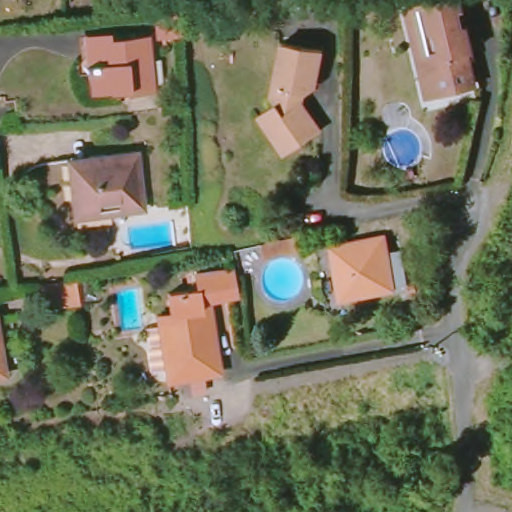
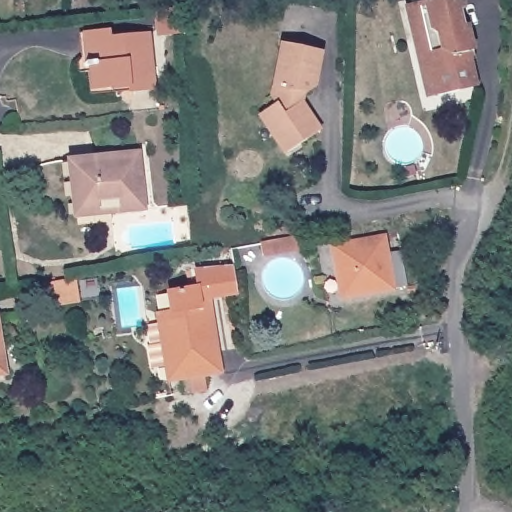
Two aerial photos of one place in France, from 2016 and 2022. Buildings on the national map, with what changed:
unchanged [(416,80),(410,56),(416,55),(408,26),(405,27),(401,7),(430,0),(456,0),(459,10),(455,12),(457,27),(462,26),(469,53),(462,55),(470,85),(454,89),(454,94),(433,99),(421,102),(416,80)]
unchanged [(180,14),(180,40),(161,41),(161,36),(152,37),(150,17),(180,14)]
unchanged [(87,73),(82,74),(79,42),(102,40),(104,47),(143,42),(149,94),(126,98),(125,90),(91,94),(87,73)]
unchanged [(270,136),(257,117),(274,106),(268,97),(277,44),(319,50),(315,84),(302,92),(302,104),(319,129),(297,143),(282,154),(270,136)]
unchanged [(61,160),(132,152),(139,210),(102,215),(101,203),(67,207),(61,160)]
unchanged [(327,248),(379,238),(382,257),(396,254),(402,287),(337,300),(327,248)]
unchanged [(239,293),(208,300),(220,373),(170,382),(157,315),(174,312),(170,292),(199,287),(196,272),(234,266),(239,293)]
unchanged [(72,282),(76,307),(48,311),(44,288),(72,282)]
unchanged [(0,375),(0,372),(1,375),(0,375)]

